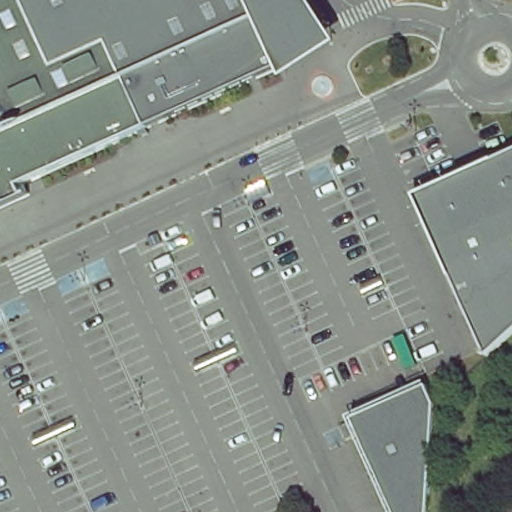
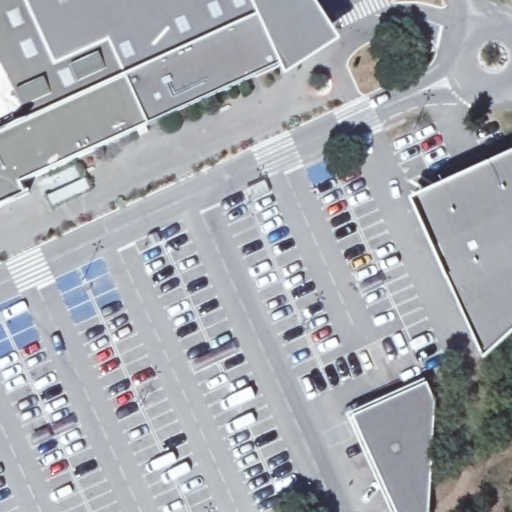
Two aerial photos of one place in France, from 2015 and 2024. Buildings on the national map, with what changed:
unchanged [(23,193),(0,204),(0,0),(306,0),(317,18),(274,38),(280,51),(280,52),(281,53),(281,54),(281,55),(281,56),(281,57),(281,58),(280,58),(280,59),(280,60),(280,61),(279,62),(278,62),(278,63),(277,63),(277,64),(276,64),(275,64),(275,65),(224,88),(146,124),(18,183),(23,193)]
unchanged [(512,334),(487,356),(413,194),(512,150),(512,334)]
unchanged [(423,379),(432,398),(424,512),(392,512),(348,413),(423,379)]

